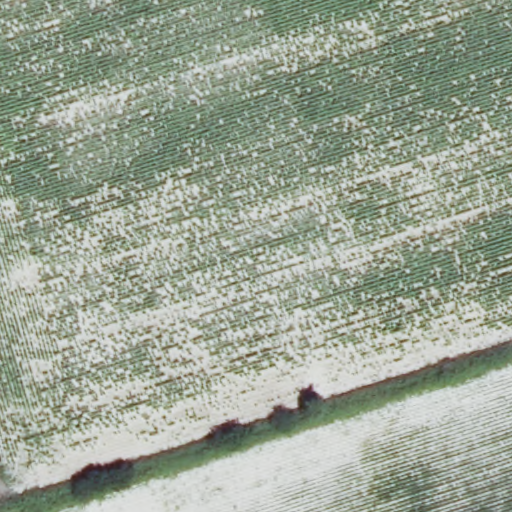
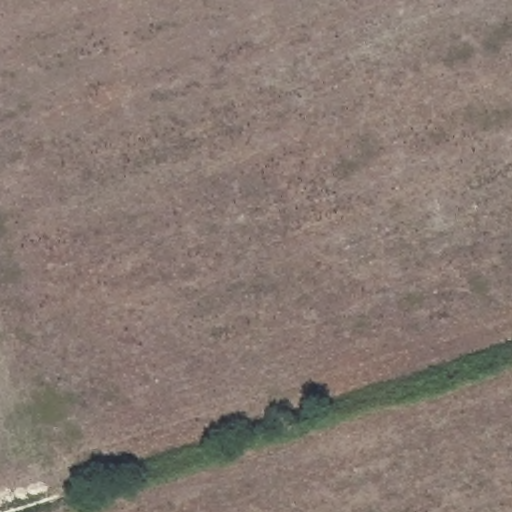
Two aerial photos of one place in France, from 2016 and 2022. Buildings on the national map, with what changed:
[]

